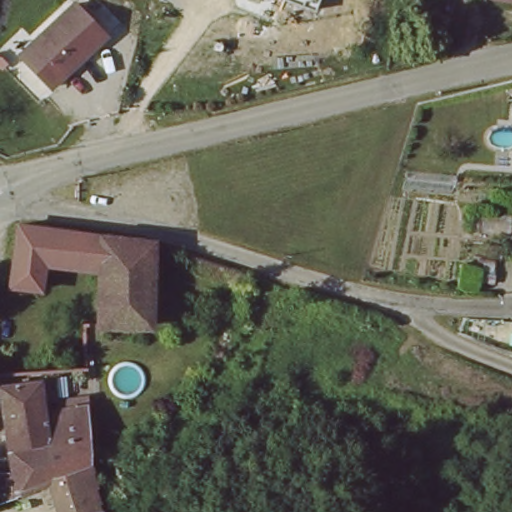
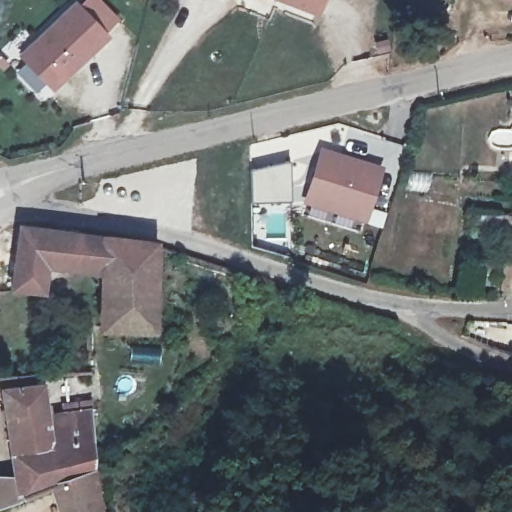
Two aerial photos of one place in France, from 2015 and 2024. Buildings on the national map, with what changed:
new [(281,0),(322,0),(317,14),(281,0)]
unchanged [(105,40),(48,90),(18,56),(75,6),(105,40)]
new [(383,168),(367,223),(303,204),(320,146),(383,168)]
unchanged [(23,228),(42,231),(47,232),(80,235),(106,239),(120,240),(157,245),(158,245),(160,329),(111,329),(110,278),(48,267),(44,294),(13,290),(23,228)]
unchanged [(0,471),(15,471),(2,384),(44,379),(50,414),(96,407),(98,467),(42,486),(32,489),(20,494),(13,497),(0,501),(0,471)]
unchanged [(42,486),(98,467),(108,512),(55,512),(42,486)]

